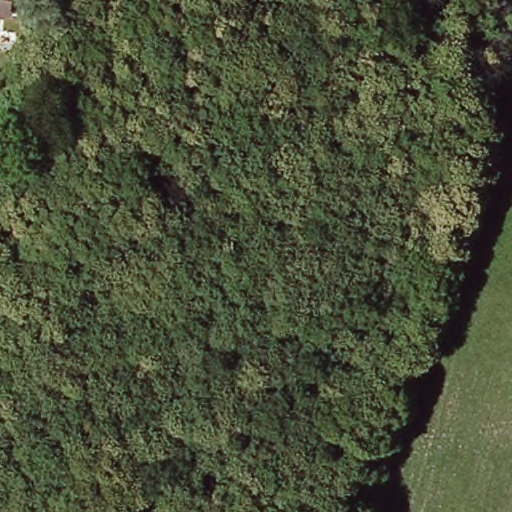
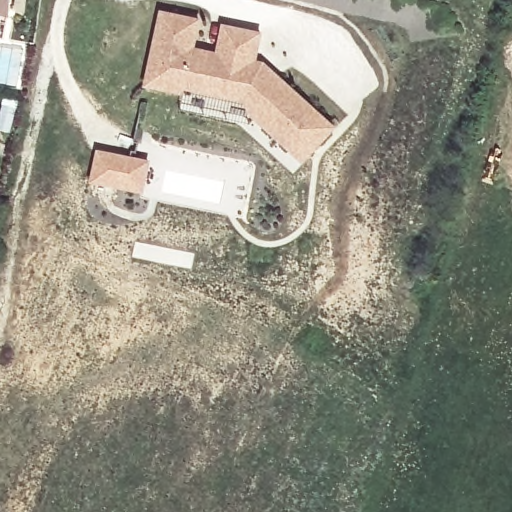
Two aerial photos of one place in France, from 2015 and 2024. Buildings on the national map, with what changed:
unchanged [(0,0),(14,0),(12,12),(11,18),(0,16),(0,0)]
new [(198,20),(192,48),(216,53),(254,61),(263,63),(278,76),(334,127),(303,161),(251,115),(254,103),(183,88),(183,93),(145,86),(160,12),(198,20)]
new [(223,25),(260,32),(254,61),(216,53),(223,25)]
new [(0,77),(0,48),(4,54),(14,47),(17,52),(20,50),(24,55),(20,69),(18,80),(0,77)]
new [(142,193),(124,189),(92,183),(98,153),(131,159),(148,162),(142,193)]

